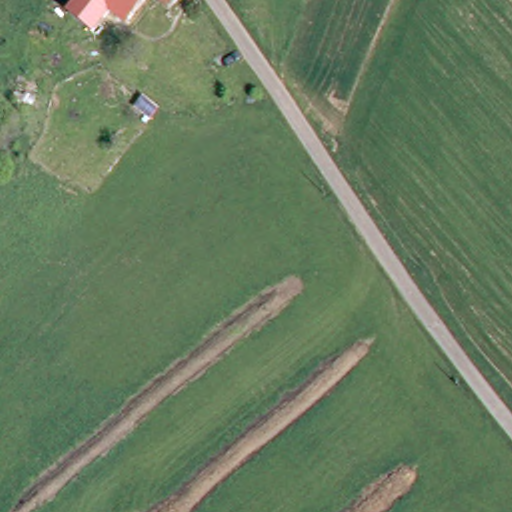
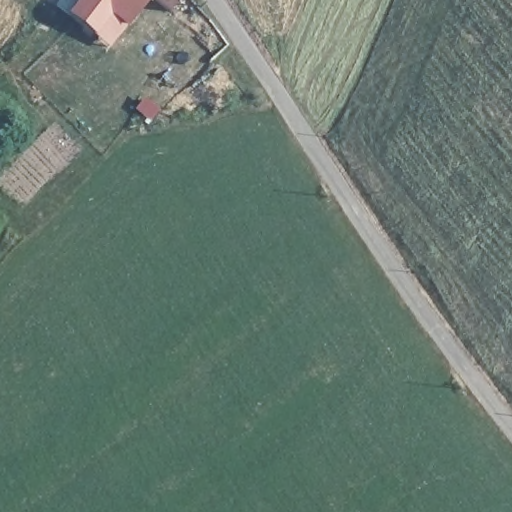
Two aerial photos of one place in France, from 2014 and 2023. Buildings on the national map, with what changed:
unchanged [(125,25),(108,12),(92,31),(69,13),(78,0),(145,0),(125,25)]
unchanged [(166,7),(155,0),(171,0),(166,7)]

